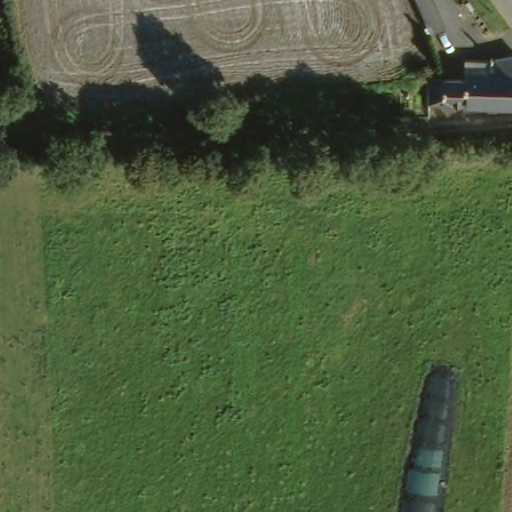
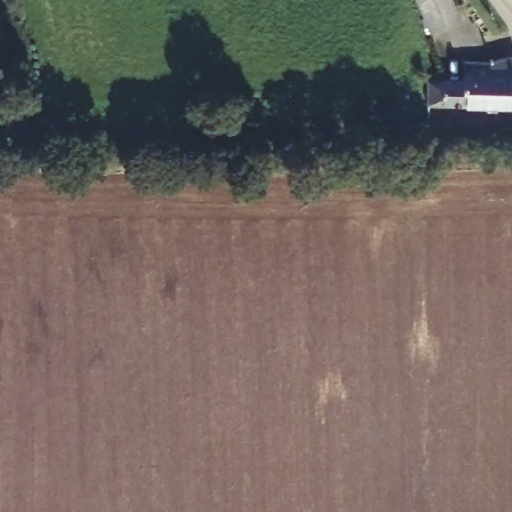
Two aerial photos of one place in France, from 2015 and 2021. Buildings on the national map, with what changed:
unchanged [(441,35),(420,1),(420,0),(421,0),(456,0),(467,18),(441,35)]
unchanged [(438,88),(470,78),(470,71),(470,61),(497,61),(512,57),(512,101),(437,105),(438,88)]

